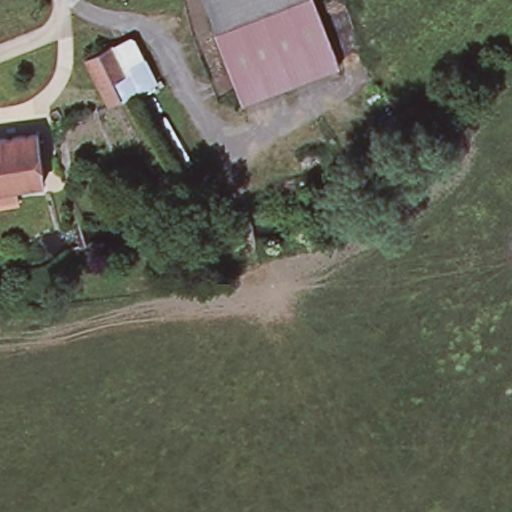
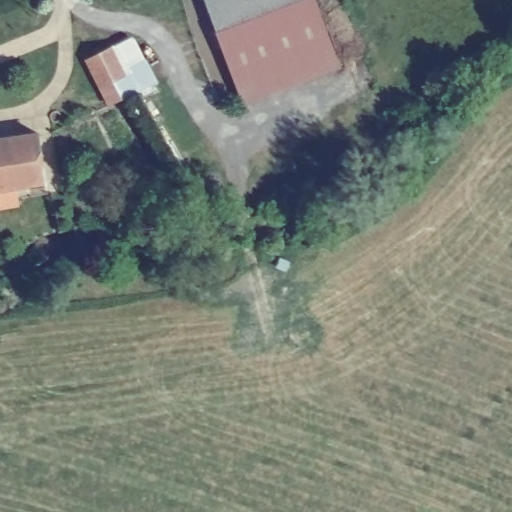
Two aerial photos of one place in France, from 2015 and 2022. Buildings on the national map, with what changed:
unchanged [(314,0),(340,70),(241,100),(205,0),(314,0)]
unchanged [(97,85),(83,57),(127,35),(150,76),(130,87),(122,76),(97,85)]
unchanged [(42,178),(0,184),(0,136),(35,130),(42,178)]

